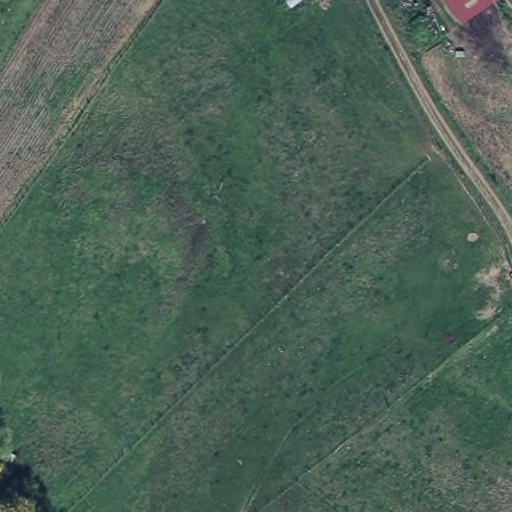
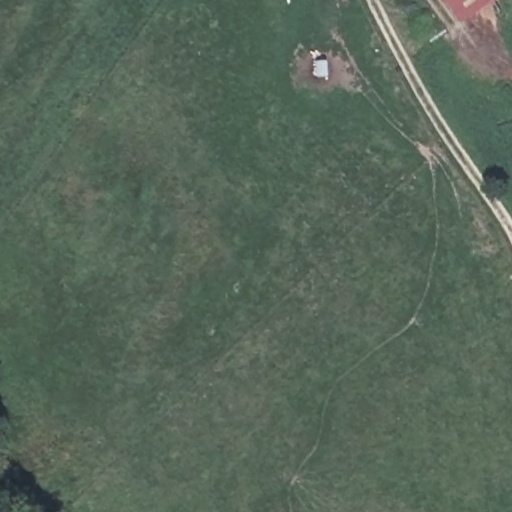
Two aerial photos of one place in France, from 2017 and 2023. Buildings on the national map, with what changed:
unchanged [(463,22),(448,0),(495,0),(463,22)]

